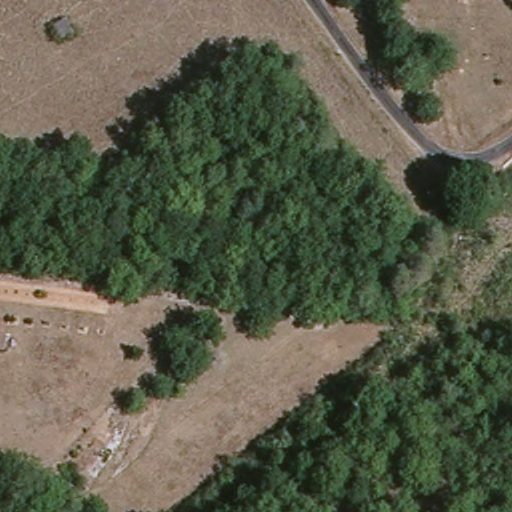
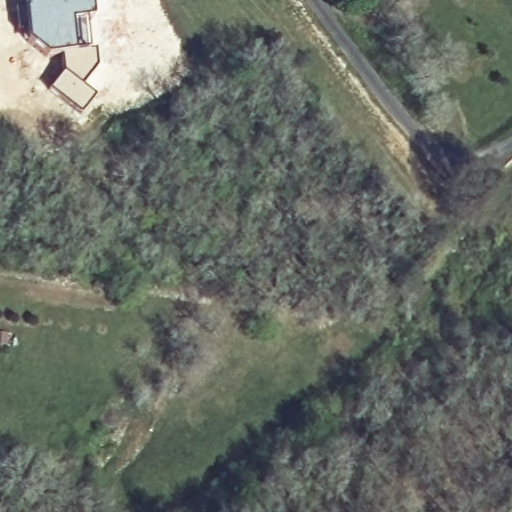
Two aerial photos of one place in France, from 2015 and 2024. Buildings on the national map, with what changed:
new [(63,72),(60,57),(44,58),(27,42),(25,37),(22,8),(87,0),(89,22),(82,24),(85,47),(74,49),(75,54),(92,52),(95,68),(80,86),(92,97),(83,107),(78,103),(75,107),(50,89),(62,72),(63,72)]

